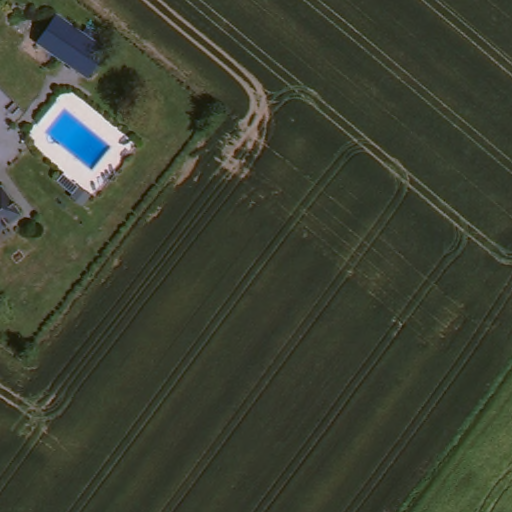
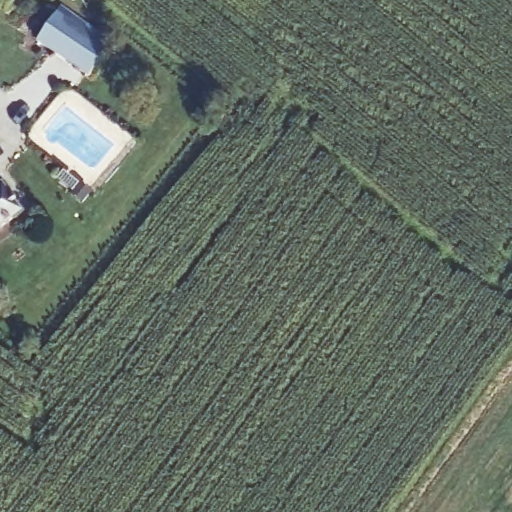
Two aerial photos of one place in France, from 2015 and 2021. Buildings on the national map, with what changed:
unchanged [(104,52),(85,80),(36,40),(55,14),(104,52)]
unchanged [(0,234),(0,190),(23,216),(0,234)]

